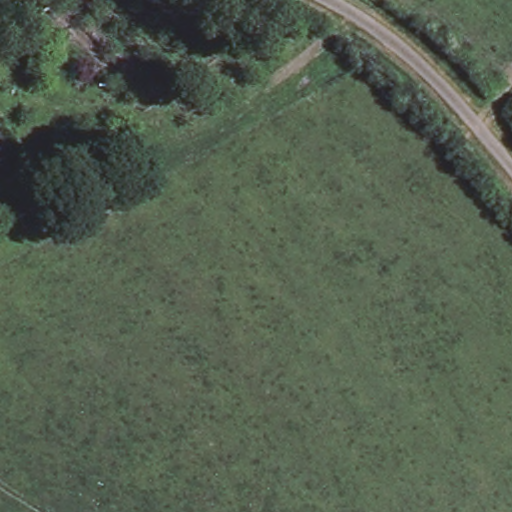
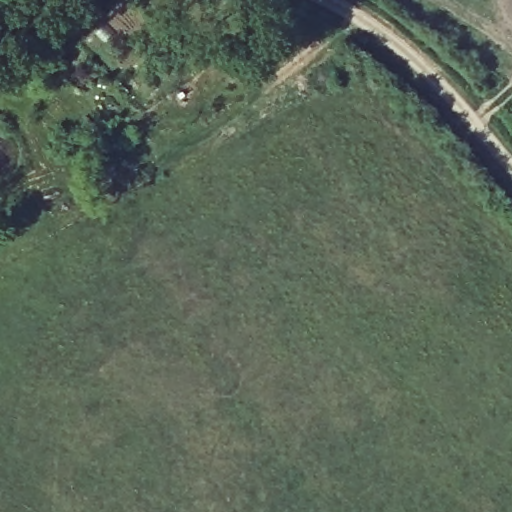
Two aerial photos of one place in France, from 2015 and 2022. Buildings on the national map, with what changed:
[]

